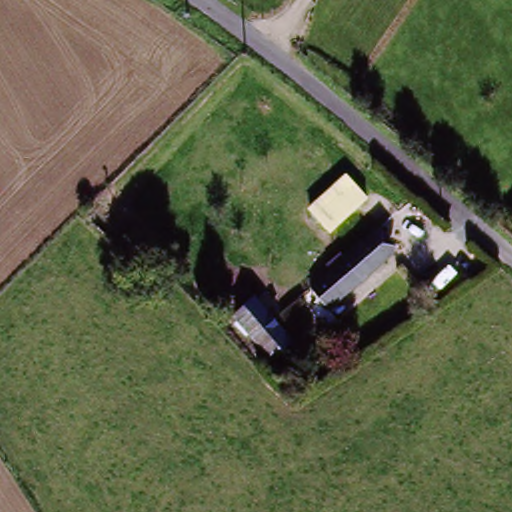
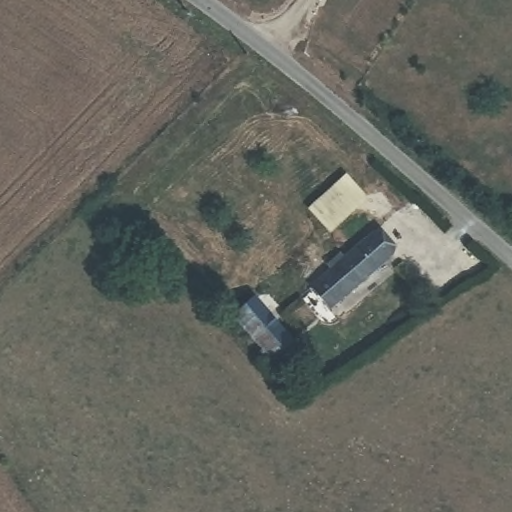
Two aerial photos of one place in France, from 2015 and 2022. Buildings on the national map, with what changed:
unchanged [(139,267),(93,227),(110,211),(154,249),(139,267)]
unchanged [(378,232),(395,251),(331,311),(312,290),(337,267),(331,257),(341,248),(348,256),(378,232)]
unchanged [(276,353),(235,313),(250,297),(291,337),(276,353)]

